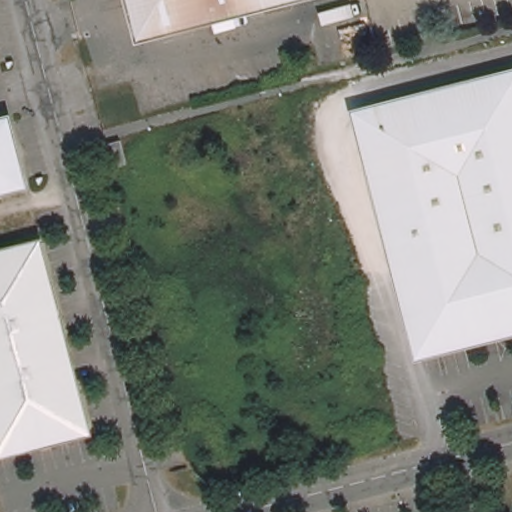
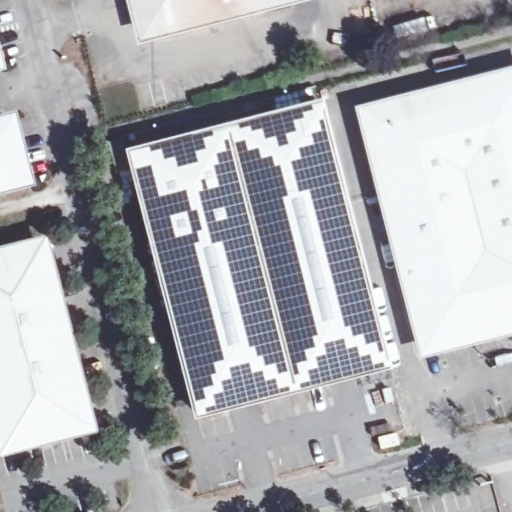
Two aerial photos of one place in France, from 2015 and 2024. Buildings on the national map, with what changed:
unchanged [(138,33),(129,0),(271,0),(138,33)]
unchanged [(512,68),(512,86),(472,96),(432,107),(416,111),(360,126),(355,105),(418,88),(511,64),(512,68)]
unchanged [(432,107),(472,96),(512,86),(512,325),(419,349),(393,256),(389,253),(391,249),(384,219),(379,215),(382,210),(373,179),(370,175),(372,172),(360,126),(416,111),(432,107)]
new [(320,100),(391,371),(192,421),(122,152),(320,100)]
unchanged [(0,190),(0,117),(10,115),(25,176),(3,182),(5,189),(0,190)]
demolished [(108,140),(122,139),(128,163),(115,166),(108,140)]
unchanged [(87,428),(7,449),(0,450),(0,449),(0,254),(40,243),(87,428)]

